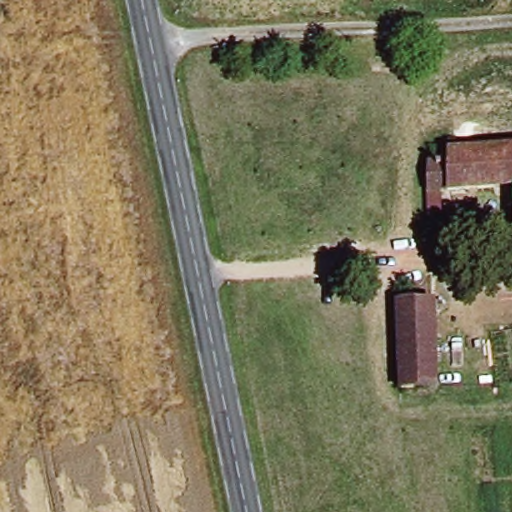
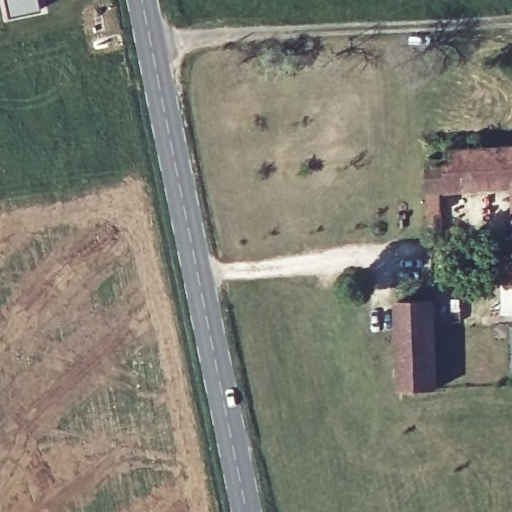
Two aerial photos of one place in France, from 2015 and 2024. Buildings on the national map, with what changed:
new [(41,9),(8,16),(5,0),(39,0),(41,9)]
unchanged [(441,185),(445,234),(431,235),(427,186),(425,149),(442,147),(443,141),(449,141),(449,147),(512,144),(512,224),(508,181),(441,185)]
unchanged [(408,391),(403,339),(400,300),(432,296),(440,388),(408,391)]

